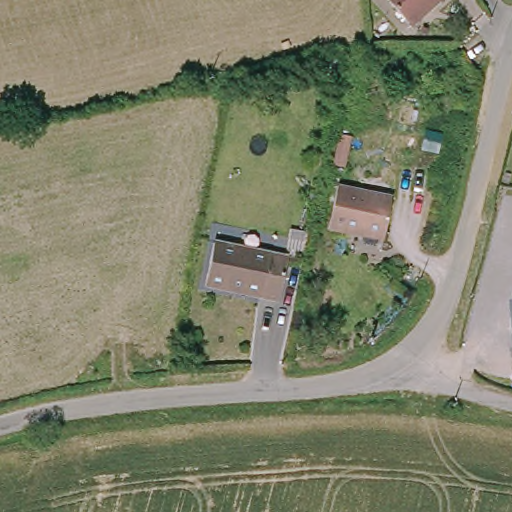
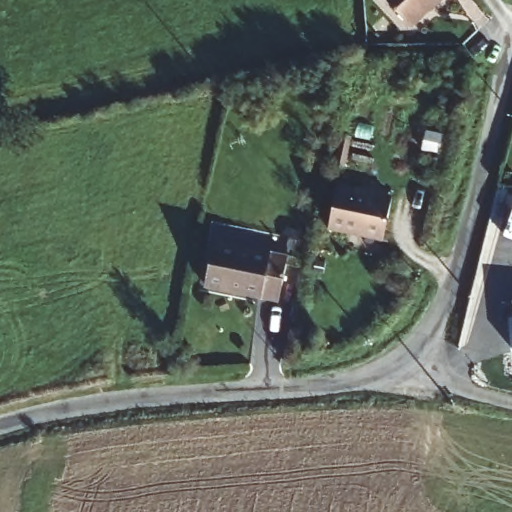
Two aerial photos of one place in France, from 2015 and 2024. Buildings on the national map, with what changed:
unchanged [(392,0),(435,0),(409,20),(392,0)]
unchanged [(392,189),(389,236),(334,233),(337,186),(392,189)]
unchanged [(287,252),(280,293),(209,283),(215,244),(287,252)]

